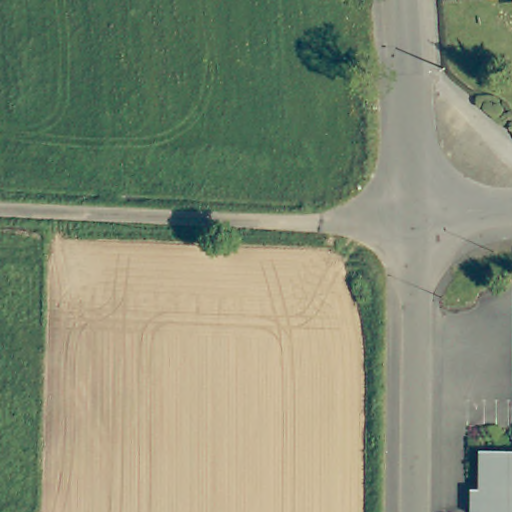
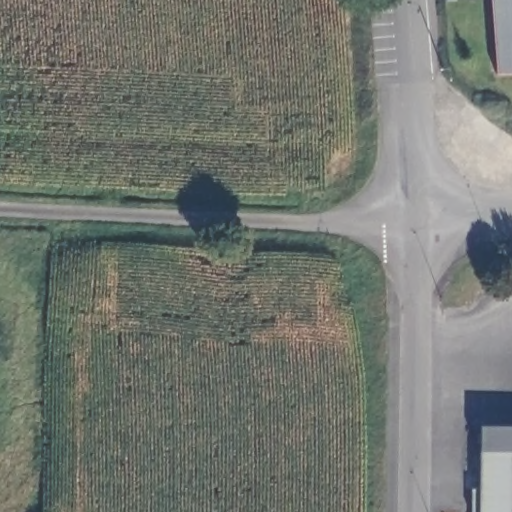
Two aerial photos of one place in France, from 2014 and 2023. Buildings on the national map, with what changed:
new [(490,0),(512,0),(512,72),(497,73),(490,0)]
unchanged [(485,503),(486,450),(512,451),(512,512),(477,512),(477,503),(485,503)]

